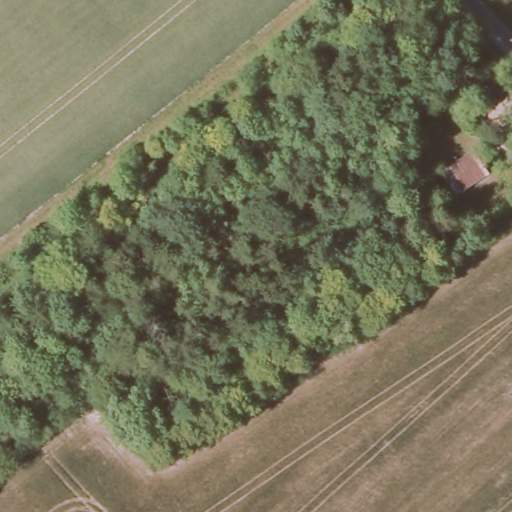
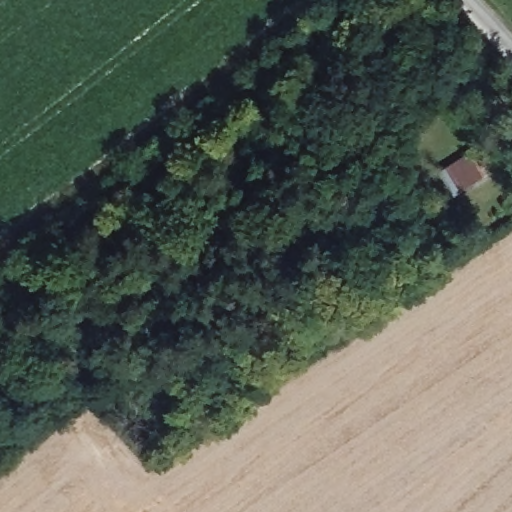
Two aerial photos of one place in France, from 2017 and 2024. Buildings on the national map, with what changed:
unchanged [(435,166),(467,145),(484,169),(450,191),(435,166)]

